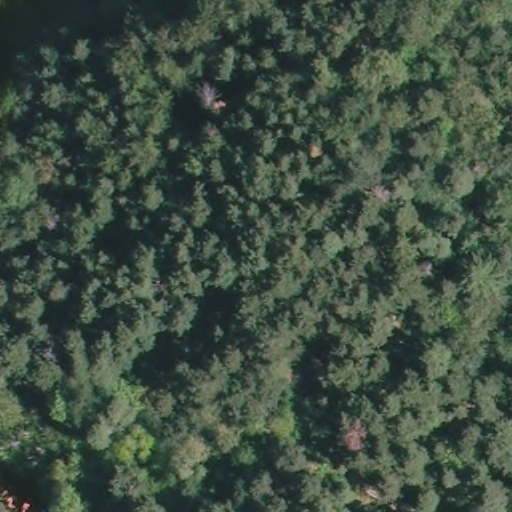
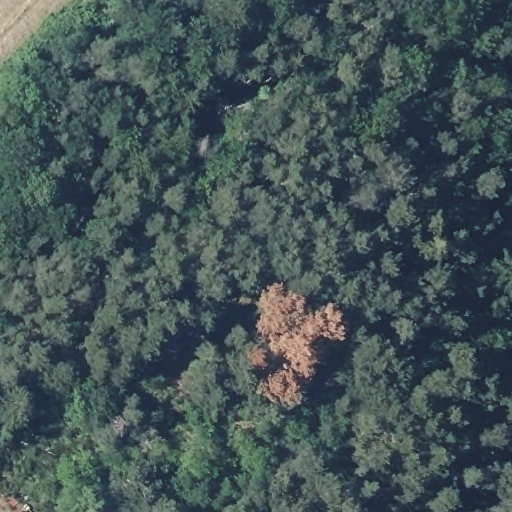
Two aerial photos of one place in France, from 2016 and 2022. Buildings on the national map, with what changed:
[]

